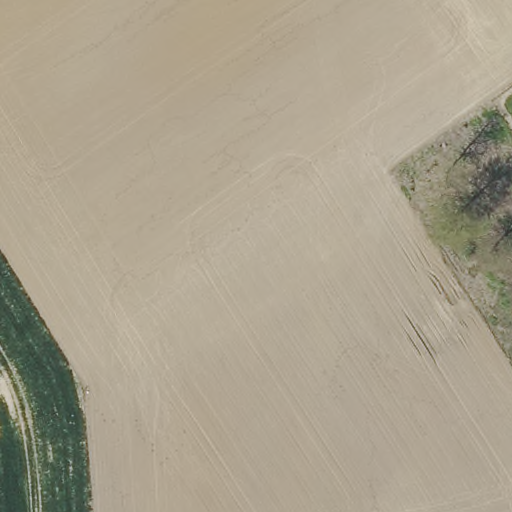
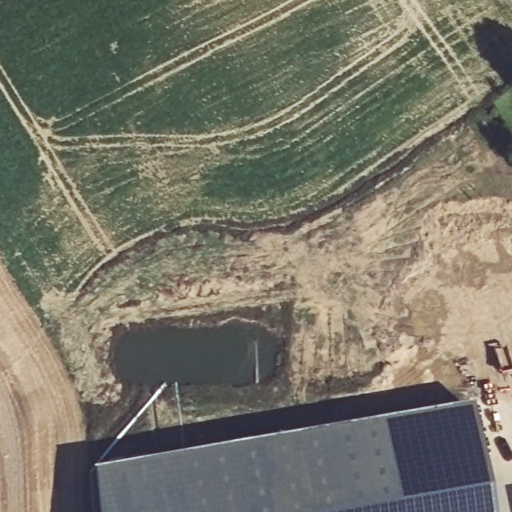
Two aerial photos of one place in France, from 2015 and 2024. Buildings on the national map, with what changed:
new [(88,475),(470,409),(488,512),(91,512),(88,475)]

